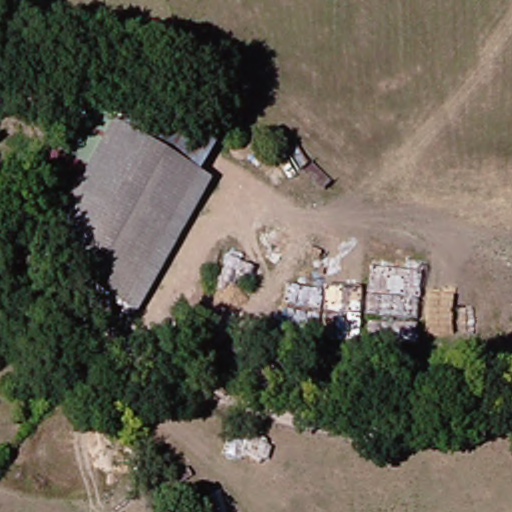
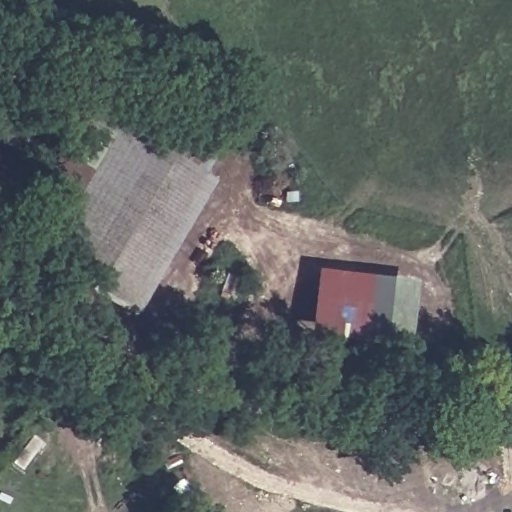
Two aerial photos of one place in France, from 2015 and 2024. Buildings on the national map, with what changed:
unchanged [(12,243),(101,70),(226,137),(200,176),(214,184),(142,314),(12,243)]
new [(311,331),(318,272),(407,282),(400,341),(311,331)]

